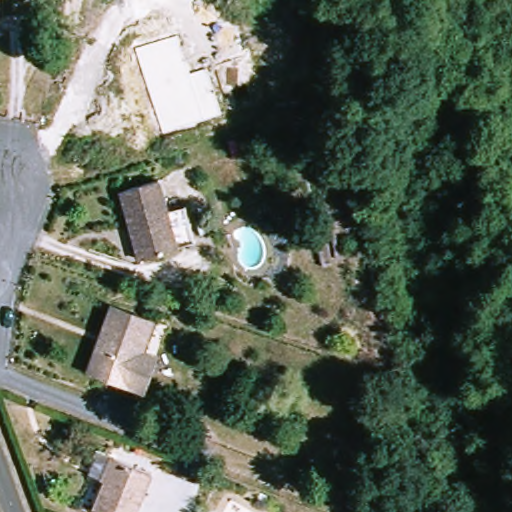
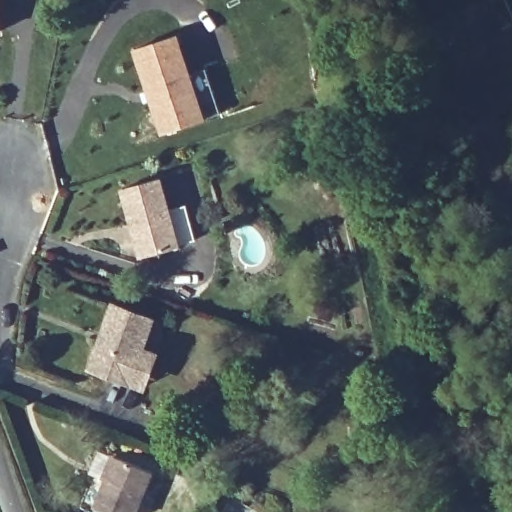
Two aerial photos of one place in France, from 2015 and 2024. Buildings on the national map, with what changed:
unchanged [(1,0),(1,34),(0,34),(0,0),(1,0)]
new [(223,114),(208,121),(162,137),(133,51),(179,36),(192,74),(207,69),(223,114)]
unchanged [(180,249),(142,262),(121,196),(159,183),(180,249)]
unchanged [(115,301),(159,317),(148,346),(164,352),(150,390),(89,368),(115,301)]
unchanged [(153,474),(138,512),(104,512),(95,508),(115,459),(153,474)]

